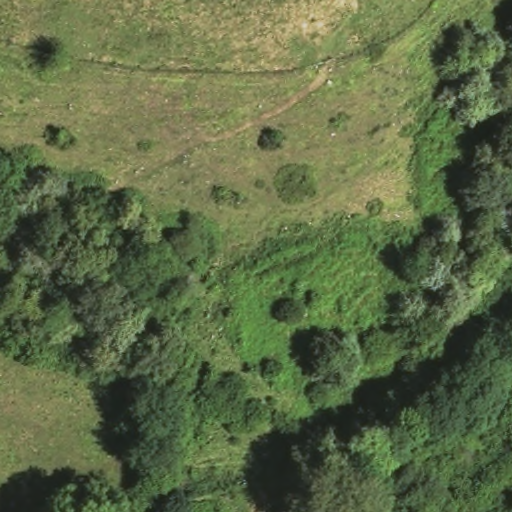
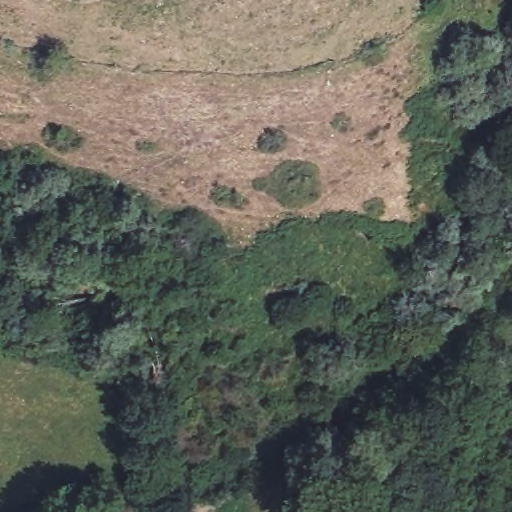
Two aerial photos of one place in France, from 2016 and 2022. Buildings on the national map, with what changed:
[]

